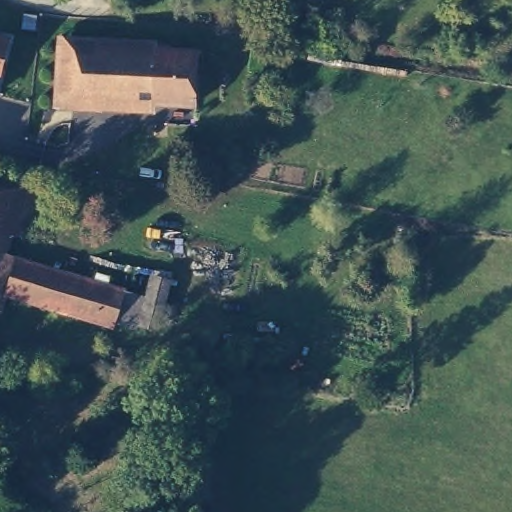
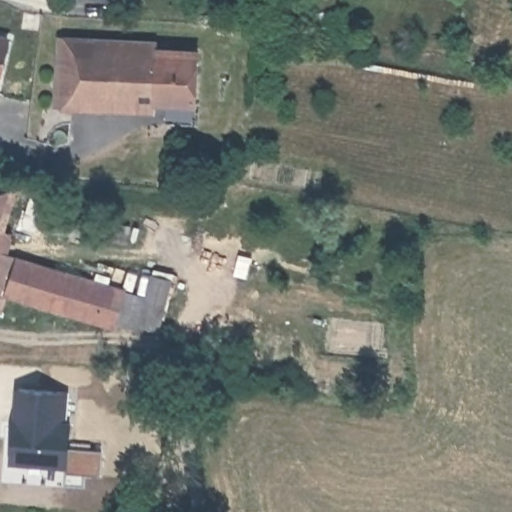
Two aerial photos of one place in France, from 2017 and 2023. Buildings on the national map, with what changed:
unchanged [(8,41),(0,77),(0,38),(8,41)]
unchanged [(201,55),(199,105),(80,101),(80,112),(64,111),(67,49),(121,51),(122,45),(130,45),(130,51),(201,55)]
unchanged [(5,165),(2,175),(25,182),(4,252),(0,266),(0,164),(5,165)]
unchanged [(130,293),(118,328),(0,292),(0,266),(4,252),(130,293)]
new [(11,426),(15,426),(17,393),(66,397),(64,429),(68,430),(67,452),(100,454),(98,478),(64,477),(65,470),(9,466),(11,426)]

